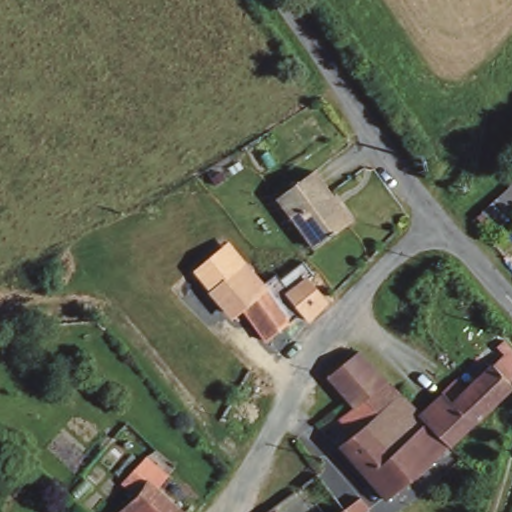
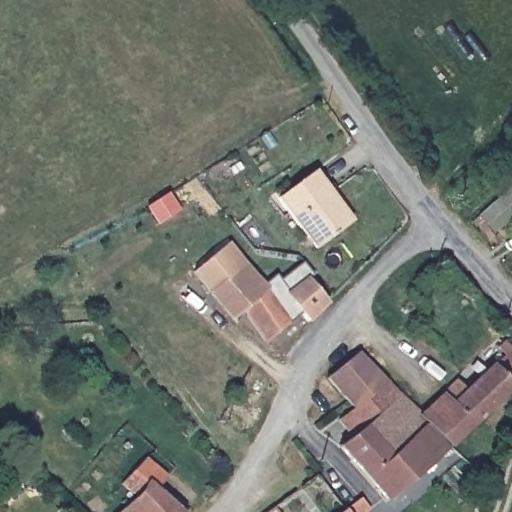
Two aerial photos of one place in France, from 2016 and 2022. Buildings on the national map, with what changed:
unchanged [(315,172),(351,222),(318,247),(279,197),(315,172)]
unchanged [(491,212),(501,203),(512,194),(512,208),(502,217),(511,229),(507,232),(496,219),(491,212)]
unchanged [(242,266),(249,260),(256,267),(267,259),(280,275),(282,272),(296,288),(311,276),(331,301),(314,317),(307,308),(271,334),(256,315),(246,323),(239,314),(217,288),(242,266)]
unchanged [(345,420),(355,412),(359,408),(334,378),(363,351),(399,388),(405,393),(424,413),(460,381),(470,392),(507,357),(500,348),(509,341),(512,345),(512,357),(509,360),(512,363),(512,372),(507,376),(512,382),(512,390),(453,446),(432,423),(429,426),(417,436),(395,454),(370,476),(344,445),(352,438),(357,435),(345,420)]
unchanged [(417,436),(429,426),(450,449),(411,483),(389,499),(370,476),(395,454),(417,436)]
unchanged [(126,478),(152,453),(175,473),(165,485),(191,510),(188,512),(145,512),(133,500),(140,492),(126,478)]
unchanged [(145,512),(119,512),(133,500),(145,512)]
unchanged [(362,501),(370,512),(348,512),(362,501)]

